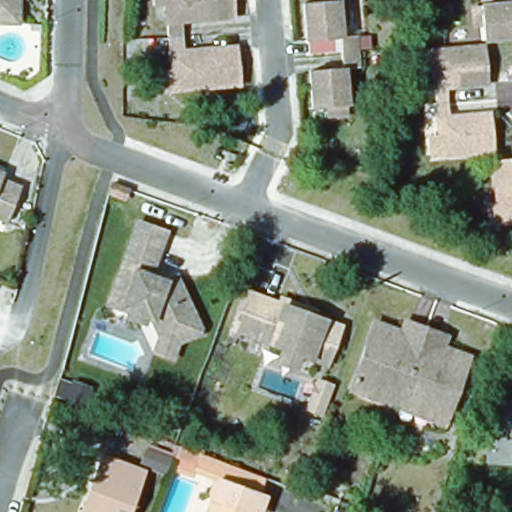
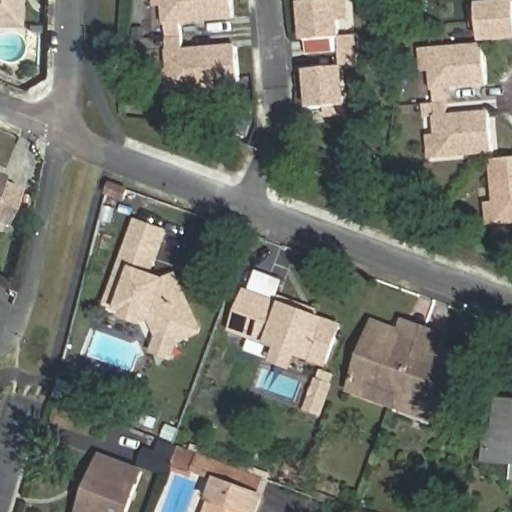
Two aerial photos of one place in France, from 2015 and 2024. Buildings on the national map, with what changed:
unchanged [(21,25),(0,25),(0,0),(21,0),(21,25)]
unchanged [(171,75),(169,56),(166,27),(165,9),(157,10),(157,0),(234,0),(235,20),(181,25),(184,55),(238,50),(242,88),(172,95),(165,95),(163,75),(171,75)]
unchanged [(340,5),(348,4),(349,24),(342,25),(344,42),(305,46),(301,8),(340,5)]
unchanged [(483,28),(475,29),(474,9),(481,8),(512,5),(512,42),(485,45),(483,28)]
unchanged [(346,71),(344,42),(358,41),(361,70),(346,71)]
unchanged [(434,142),(441,141),(434,75),(426,75),(424,56),(432,55),(486,50),(490,87),(451,92),(454,121),(494,118),(498,156),(443,160),(436,161),(434,142)]
unchanged [(330,111),(311,113),(308,75),(346,71),(350,110),(350,116),(330,119),(330,111)]
unchanged [(499,227),(496,207),(504,206),(499,165),(512,164),(512,226),(506,226),(499,227)]
unchanged [(6,185),(25,192),(10,227),(0,223),(0,174),(8,178),(6,185)]
unchanged [(152,352),(157,336),(149,320),(105,305),(134,222),(134,221),(162,231),(147,275),(162,280),(174,275),(197,327),(196,332),(175,341),(170,357),(152,352)]
unchanged [(325,368),(300,360),(294,361),(280,356),(278,351),(231,335),(245,295),(339,328),(325,368)]
unchanged [(448,424),(354,390),(375,332),(402,342),(406,331),(425,338),(445,346),(441,356),(469,366),(448,424)]
unchanged [(492,440),(499,440),(498,411),(512,411),(512,466),(494,466),(492,440)]
unchanged [(202,462),(196,475),(175,467),(180,455),(202,462)]
unchanged [(102,458),(142,474),(127,512),(79,512),(91,484),(102,458)]
unchanged [(266,496),(261,512),(214,512),(225,481),(266,496)]

